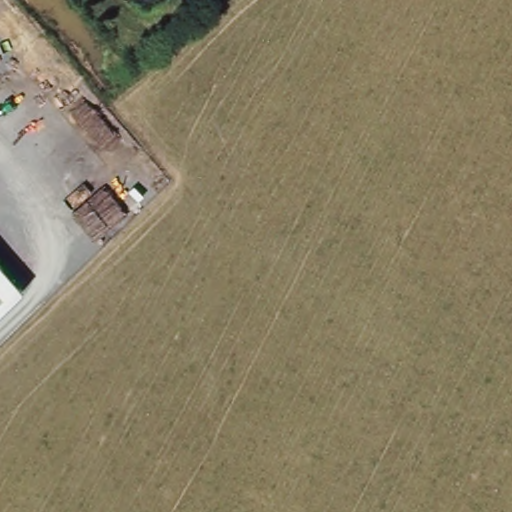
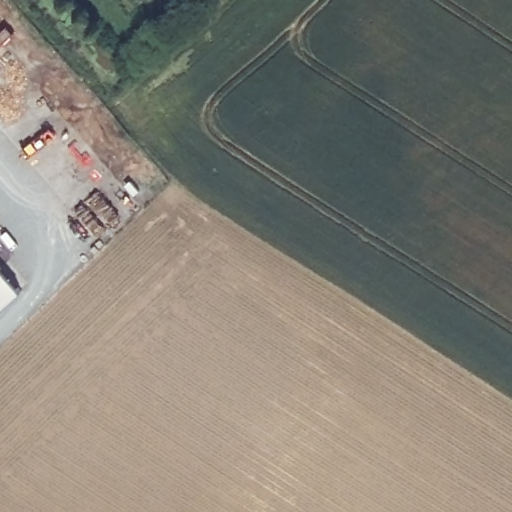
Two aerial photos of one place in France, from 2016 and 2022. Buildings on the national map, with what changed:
unchanged [(23,292),(0,312),(0,267),(23,292)]

